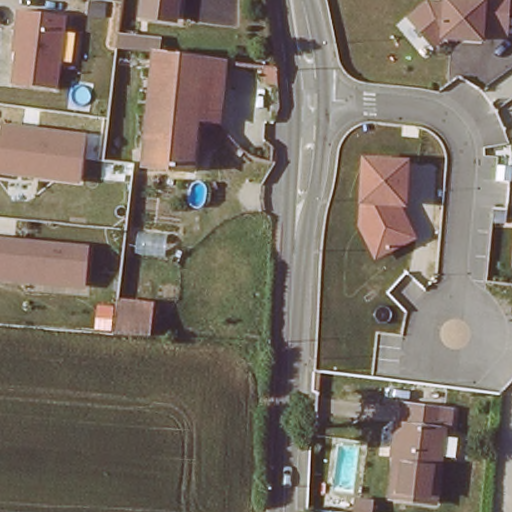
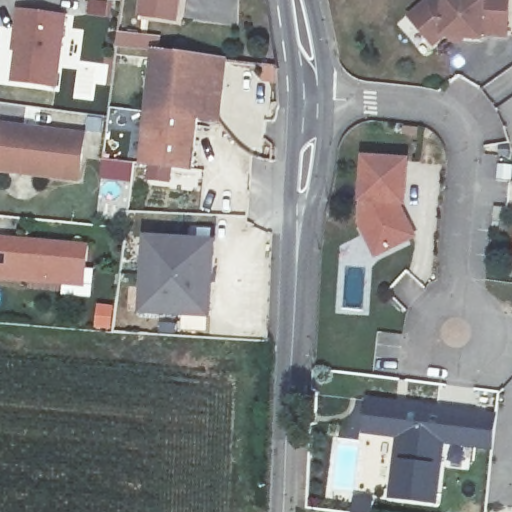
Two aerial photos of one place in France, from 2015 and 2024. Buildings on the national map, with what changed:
unchanged [(186,17),(150,12),(146,12),(147,0),(188,0),(186,17)]
unchanged [(425,0),(511,0),(507,38),(487,36),(484,41),(444,39),(435,48),(406,15),(425,0)]
unchanged [(57,88),(11,83),(13,54),(10,53),(16,8),(65,15),(57,88)]
unchanged [(165,52),(203,57),(197,118),(192,170),(140,163),(155,50),(165,52)]
unchanged [(227,60),(220,122),(197,118),(203,57),(227,60)]
unchanged [(256,63),(280,65),(280,78),(280,83),(253,79),(256,63)]
demolished [(445,92),(418,89),(419,71),(447,73),(445,92)]
unchanged [(88,132),(82,183),(0,173),(0,129),(1,121),(88,132)]
unchanged [(375,260),(358,224),(359,202),(362,156),(412,160),(408,206),(401,206),(417,238),(375,260)]
unchanged [(87,289),(0,281),(0,236),(92,245),(87,289)]
new [(144,236),(217,239),(212,321),(141,314),(144,236)]
demolished [(155,301),(154,335),(116,333),(117,298),(155,301)]
unchanged [(442,411),(440,430),(442,430),(435,505),(389,500),(397,424),(400,425),(402,406),(442,411)]
new [(374,494),(371,512),(349,512),(353,491),(374,494)]

